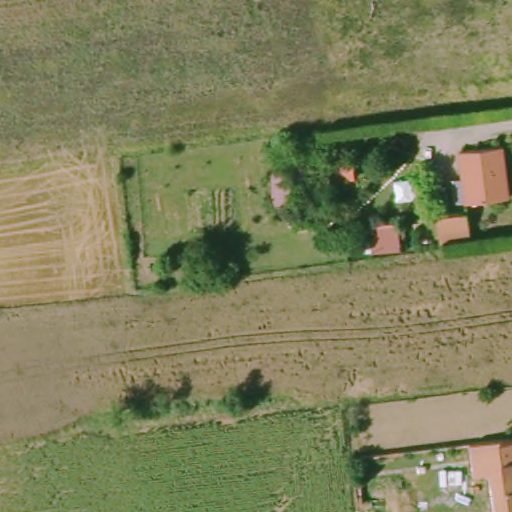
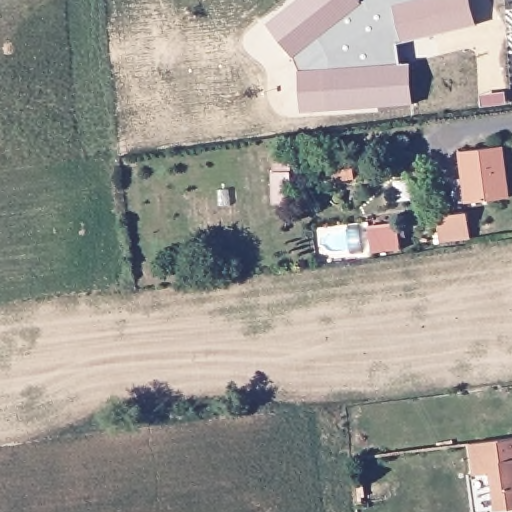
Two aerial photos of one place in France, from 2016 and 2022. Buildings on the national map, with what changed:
new [(298,0),(360,0),(362,2),(313,40),(294,55),(269,22),(298,0)]
new [(395,4),(370,10),(367,0),(413,0),(395,4)]
new [(477,24),(405,41),(395,4),(413,0),(471,0),(477,24)]
new [(302,110),(300,70),(294,55),(313,40),(325,68),(327,110),(302,110)]
new [(413,104),(327,110),(325,68),(410,62),(413,104)]
unchanged [(458,176),(456,151),(499,145),(504,196),(470,200),(460,201),(458,176)]
unchanged [(326,173),(324,154),(340,154),(342,171),(326,173)]
unchanged [(433,239),(431,214),(462,211),(464,235),(433,239)]
unchanged [(367,248),(365,223),(396,219),(399,245),(367,248)]
unchanged [(499,510),(494,461),(512,459),(512,509),(499,510)]

